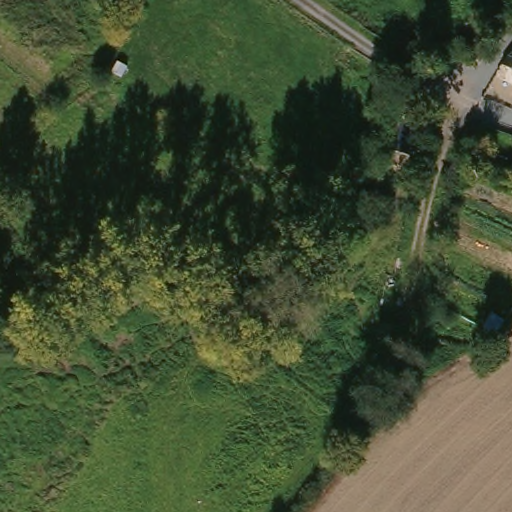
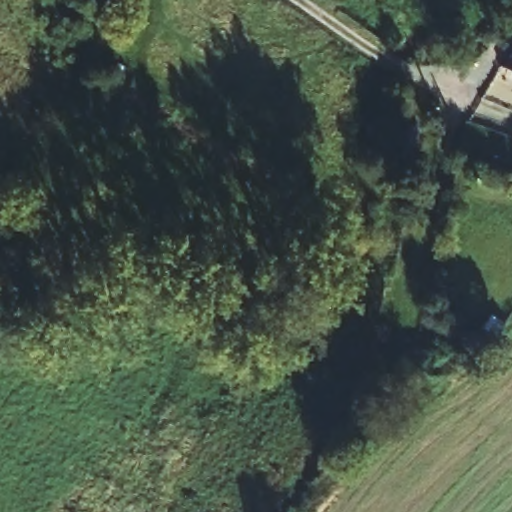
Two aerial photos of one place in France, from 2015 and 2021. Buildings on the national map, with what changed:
unchanged [(512,50),(512,66),(505,63),(512,50)]

